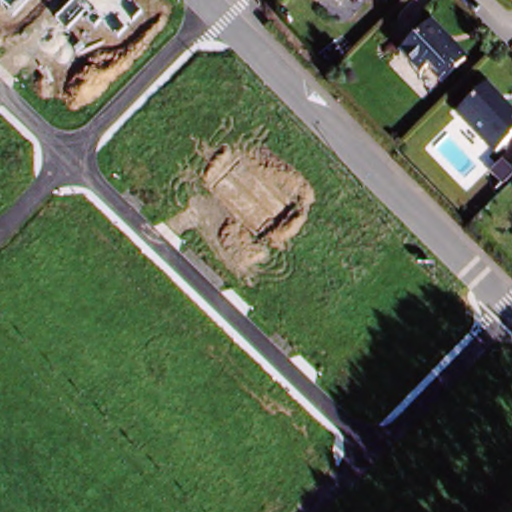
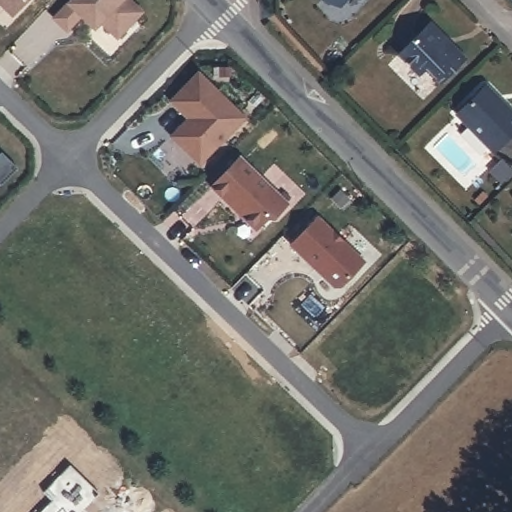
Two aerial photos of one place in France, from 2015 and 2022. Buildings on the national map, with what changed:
unchanged [(12,11),(0,0),(23,0),(12,11)]
unchanged [(70,0),(132,0),(143,10),(118,36),(101,20),(94,27),(83,14),(68,30),(63,25),(54,15),(70,0)]
unchanged [(336,4),(330,0),(339,0),(336,4)]
unchanged [(459,56),(434,80),(424,69),(416,78),(394,57),(425,24),(459,56)]
new [(201,76),(248,121),(204,167),(176,139),(186,129),(191,128),(196,123),(175,104),(201,76)]
unchanged [(512,120),(512,135),(494,154),(457,120),(483,92),(512,120)]
new [(23,169),(5,187),(2,183),(0,186),(0,159),(6,153),(23,169)]
new [(289,202),(259,233),(210,187),(240,155),(289,202)]
new [(318,215),(366,261),(343,286),(336,286),(291,243),(318,215)]

